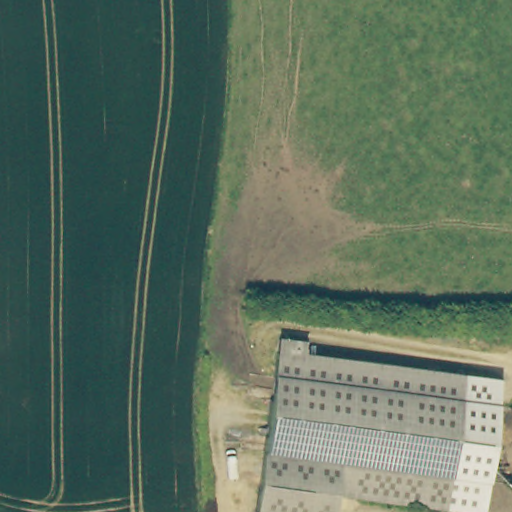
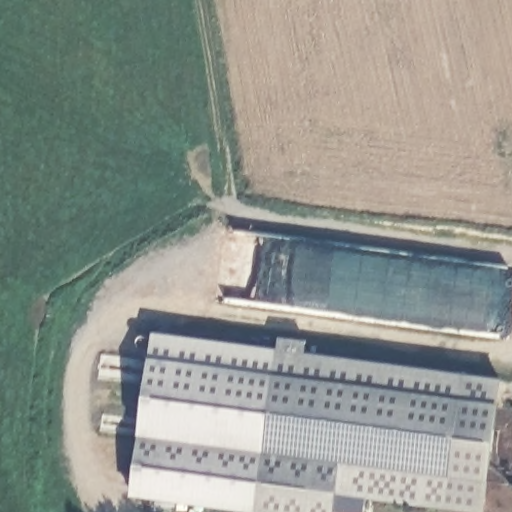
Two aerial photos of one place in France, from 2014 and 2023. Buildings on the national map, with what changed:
new [(251,512),(246,512),(130,498),(152,333),(273,350),(251,512)]
unchanged [(331,494),(329,512),(251,512),(275,340),(301,343),(300,355),(458,376),(440,508),(331,494)]
unchanged [(458,376),(501,382),(482,512),(467,512),(440,508),(458,376)]
demolished [(496,443),(506,416),(512,412),(512,481),(501,469),(496,443)]

